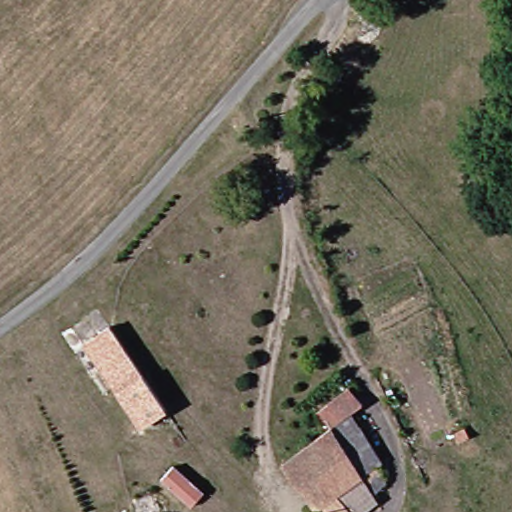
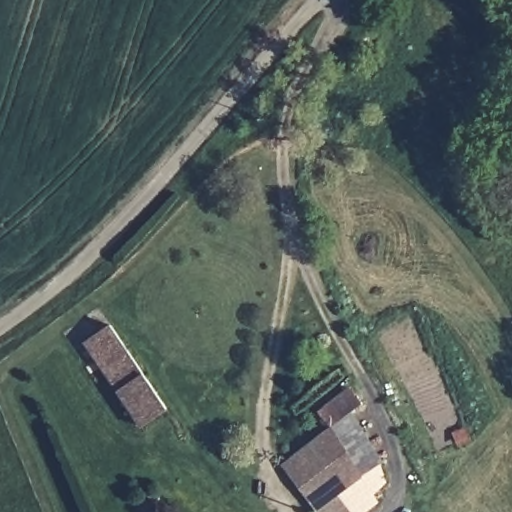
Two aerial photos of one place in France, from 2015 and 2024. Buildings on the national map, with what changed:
unchanged [(113,329),(170,411),(143,430),(87,347),(113,329)]
unchanged [(361,386),(372,402),(350,420),(339,405),(361,386)]
unchanged [(387,494),(365,512),(320,512),(269,452),(317,410),(355,455),(383,430),(387,444),(394,475),(381,486),(387,494)]

